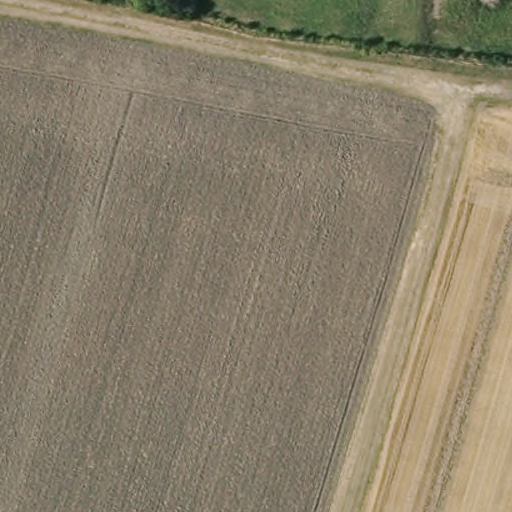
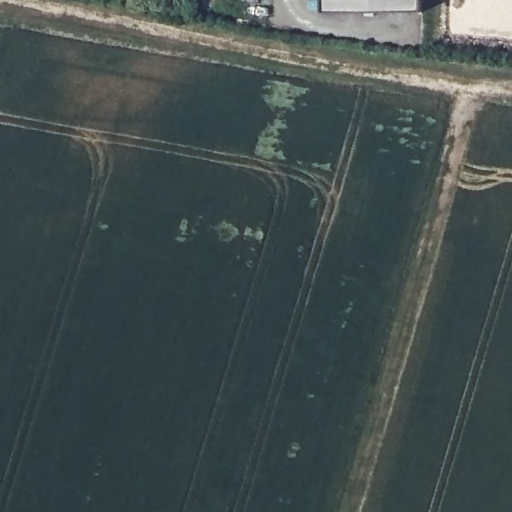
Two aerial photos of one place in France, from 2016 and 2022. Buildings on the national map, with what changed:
new [(322,12),(322,0),(422,0),(422,11),(322,12)]

